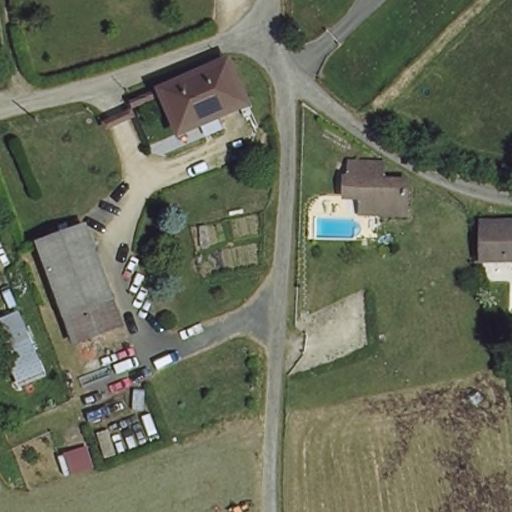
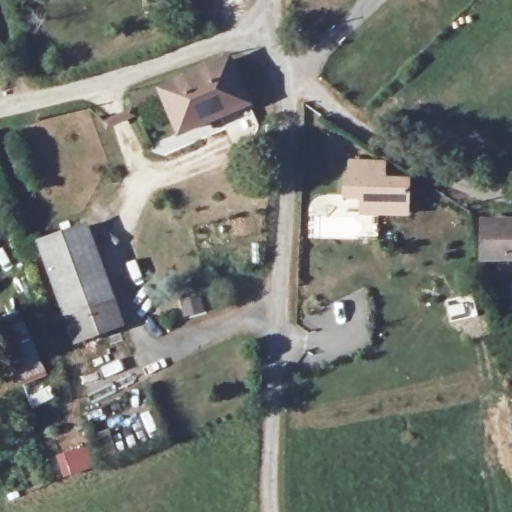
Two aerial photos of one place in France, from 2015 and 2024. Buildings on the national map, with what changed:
unchanged [(233,53),(251,100),(175,133),(157,84),(233,53)]
unchanged [(365,203),(346,202),(345,181),(353,180),(353,164),(380,164),(380,177),(391,178),(409,179),(408,191),(408,219),(378,217),(365,217),(365,203)]
unchanged [(512,215),(512,259),(478,257),(480,215),(512,215)]
unchanged [(111,295),(65,312),(39,240),(85,224),(111,295)]
unchanged [(50,377),(20,388),(0,341),(0,306),(19,297),(50,377)]

